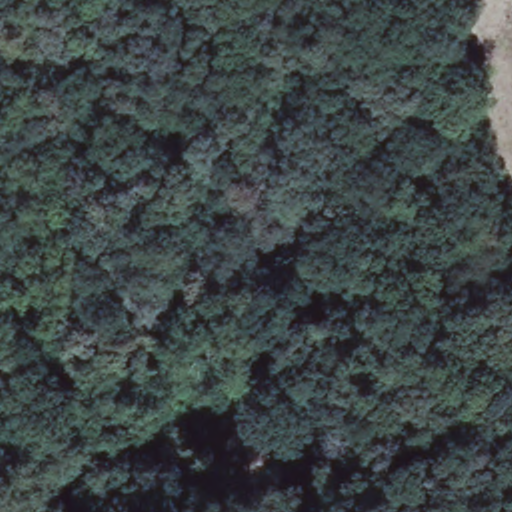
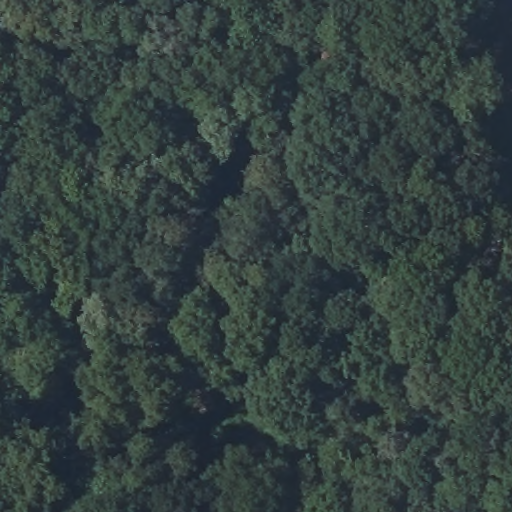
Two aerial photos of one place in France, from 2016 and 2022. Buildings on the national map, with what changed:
[]

